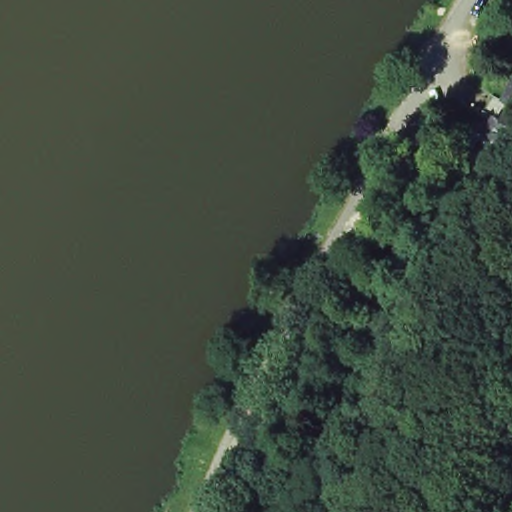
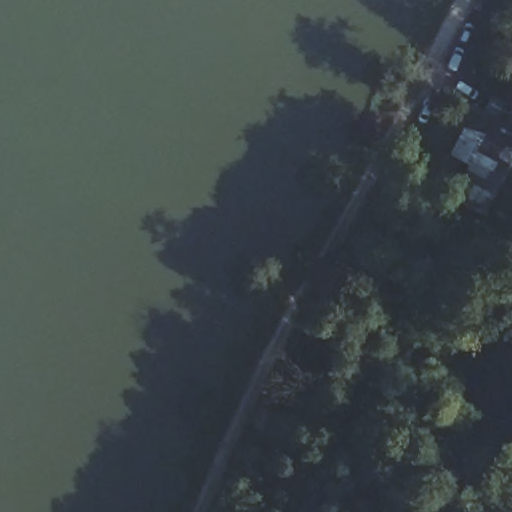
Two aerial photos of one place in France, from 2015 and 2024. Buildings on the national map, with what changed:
unchanged [(507,145),(488,174),(448,157),(462,127),(507,145)]

